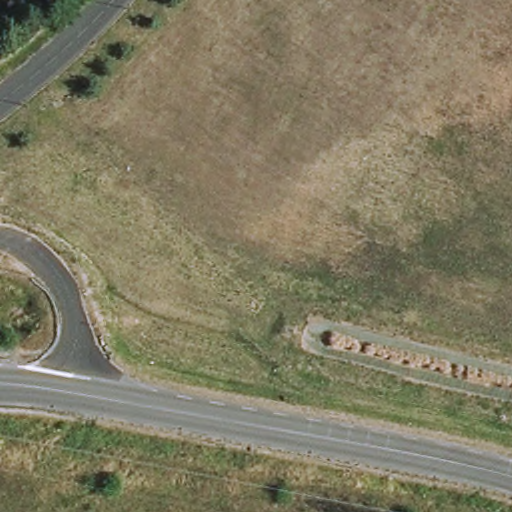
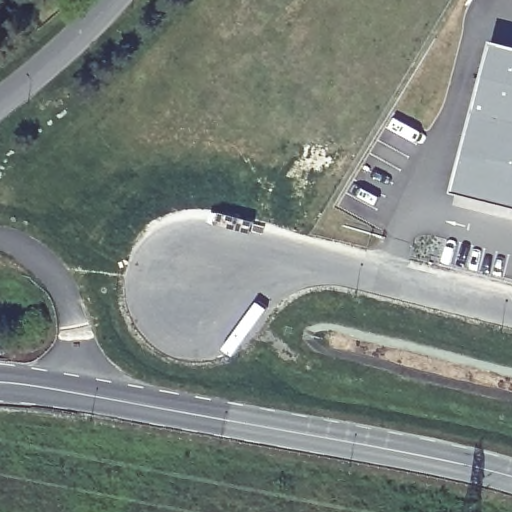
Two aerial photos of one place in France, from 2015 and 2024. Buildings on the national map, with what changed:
new [(495,43),(512,47),(512,206),(456,190),(495,43)]

